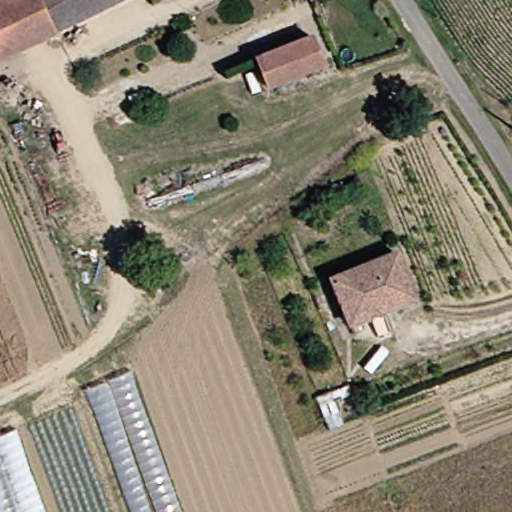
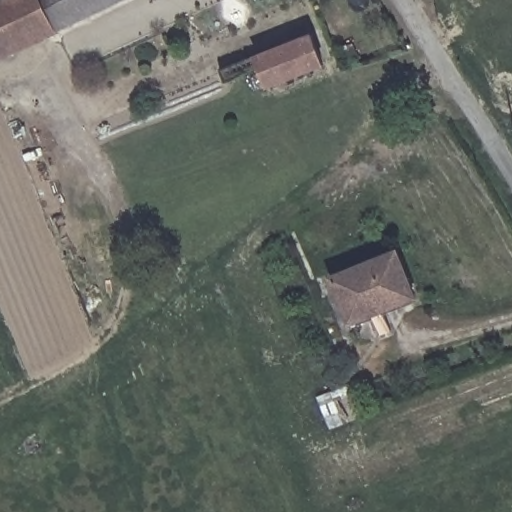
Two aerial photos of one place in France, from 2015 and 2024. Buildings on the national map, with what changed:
unchanged [(49,0),(65,32),(0,63),(0,3),(7,0),(49,0)]
unchanged [(49,0),(131,0),(65,32),(49,0)]
unchanged [(314,37),(326,65),(271,88),(258,61),(314,37)]
unchanged [(356,310),(341,275),(400,250),(420,292),(422,298),(388,312),(362,322),(356,310)]
demolished [(89,390),(130,373),(181,512),(134,512),(89,390)]
demolished [(47,512),(0,512),(0,436),(16,429),(47,512)]

